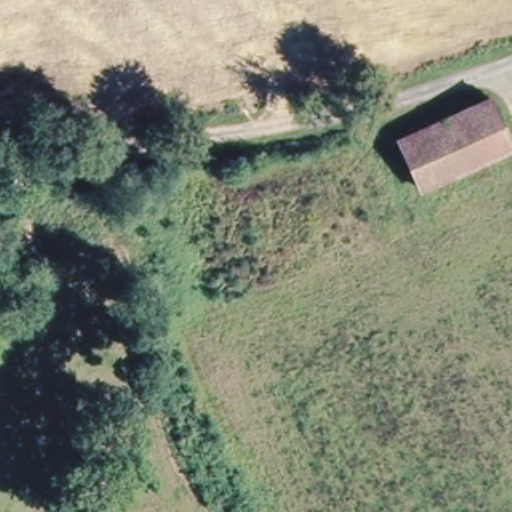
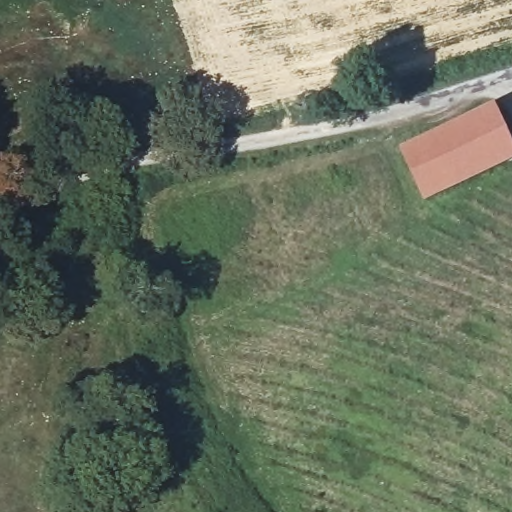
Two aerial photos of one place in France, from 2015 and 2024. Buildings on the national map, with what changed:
unchanged [(399,146),(494,102),(512,144),(512,162),(427,204),(399,146)]

